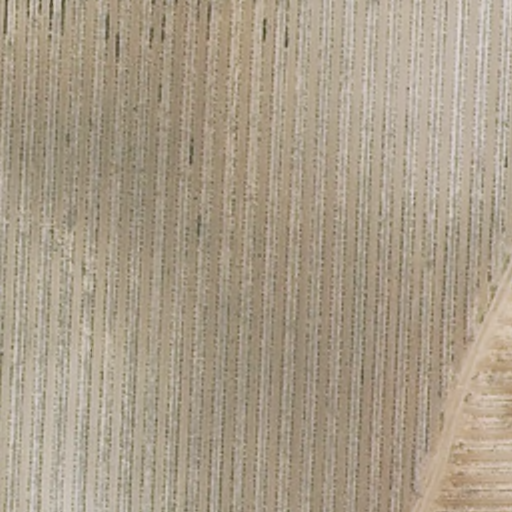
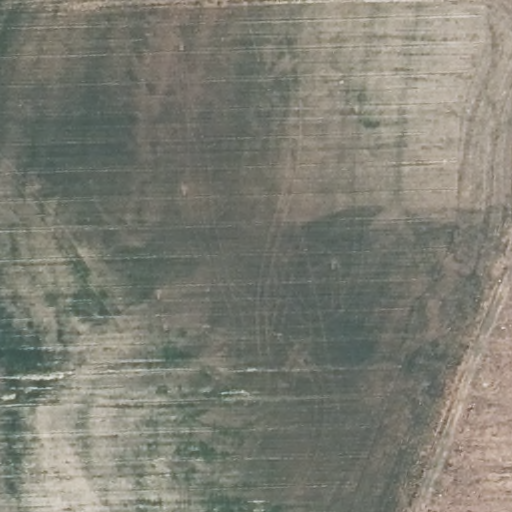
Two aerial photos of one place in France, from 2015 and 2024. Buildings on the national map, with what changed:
[]

